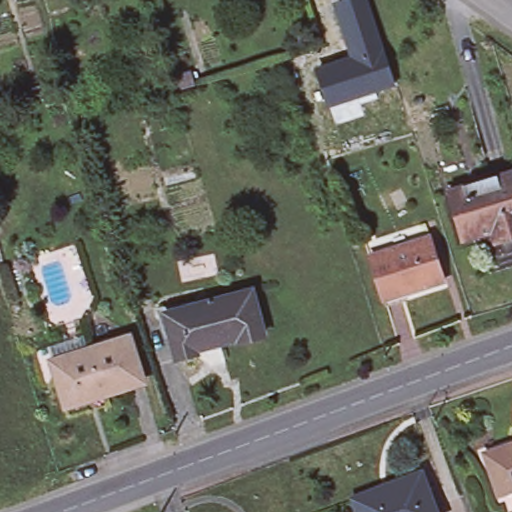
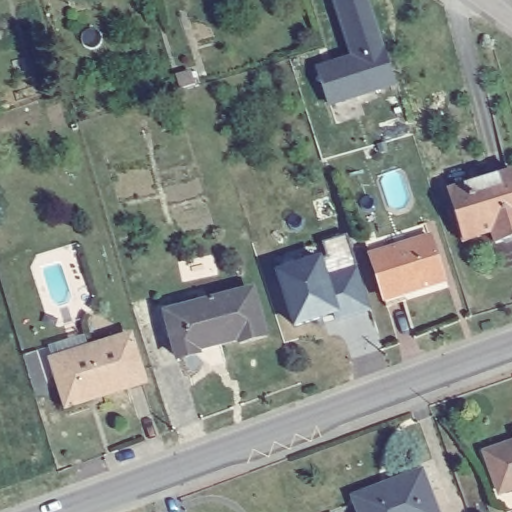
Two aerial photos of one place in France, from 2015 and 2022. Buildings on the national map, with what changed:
unchanged [(357,0),(365,0),(370,16),(393,87),(327,108),(315,73),(342,65),(343,68),(352,65),(334,8),(357,0)]
unchanged [(510,173),(512,180),(512,239),(492,246),(489,234),(461,243),(446,195),(510,173)]
unchanged [(367,254),(363,242),(387,234),(422,223),(426,236),(440,281),(412,289),(414,297),(407,299),(383,306),(380,296),(367,254)]
new [(325,254),(327,274),(357,267),(371,310),(339,322),(335,313),(295,326),(277,269),(325,254)]
unchanged [(248,289),(260,334),(237,341),(236,336),(193,347),(195,352),(175,357),(163,312),(248,289)]
unchanged [(127,335),(140,381),(65,403),(50,358),(127,335)]
unchanged [(498,485),(485,448),(512,438),(512,480),(498,485)]
unchanged [(436,512),(357,512),(352,496),(420,471),(436,512)]

